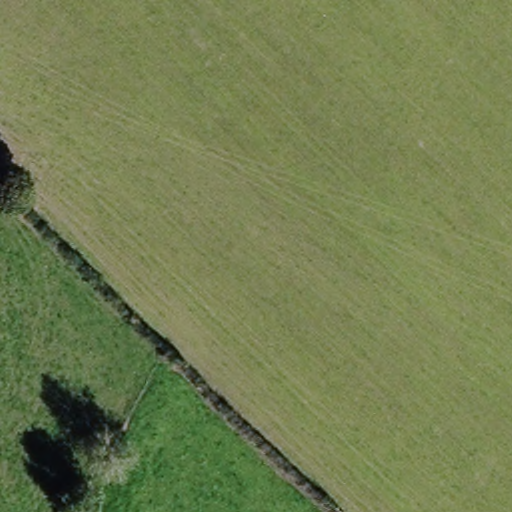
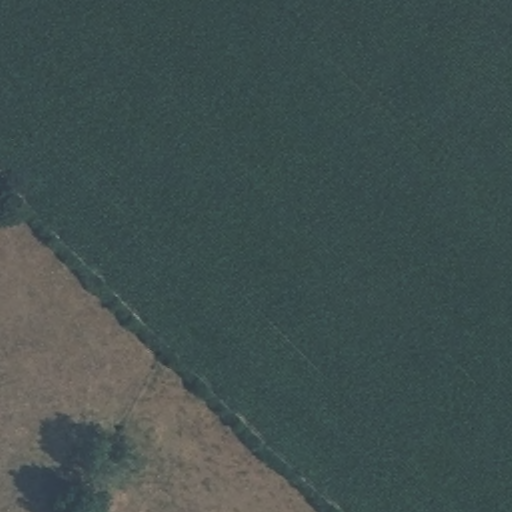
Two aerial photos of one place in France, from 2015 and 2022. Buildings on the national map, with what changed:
[]

